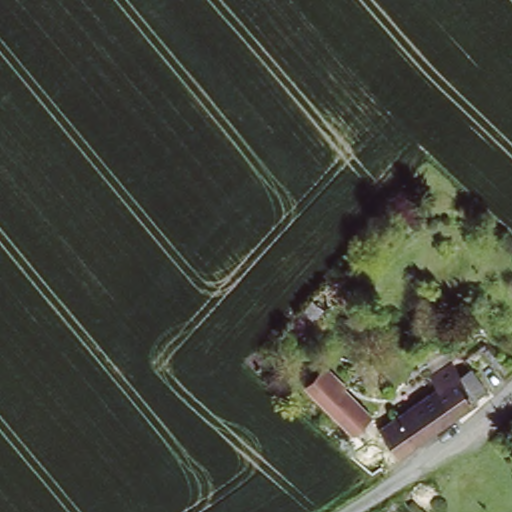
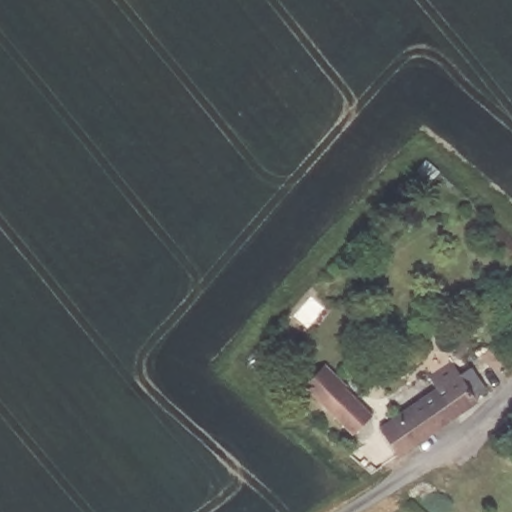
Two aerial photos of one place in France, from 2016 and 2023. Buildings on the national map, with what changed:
unchanged [(428,375),(453,360),(460,372),(476,363),(482,371),(478,374),(487,389),(395,451),(378,423),(436,388),(428,375)]
unchanged [(342,390),(354,400),(372,415),(356,434),(331,414),(310,396),(305,392),(322,371),(327,375),(343,388),(342,390)]

